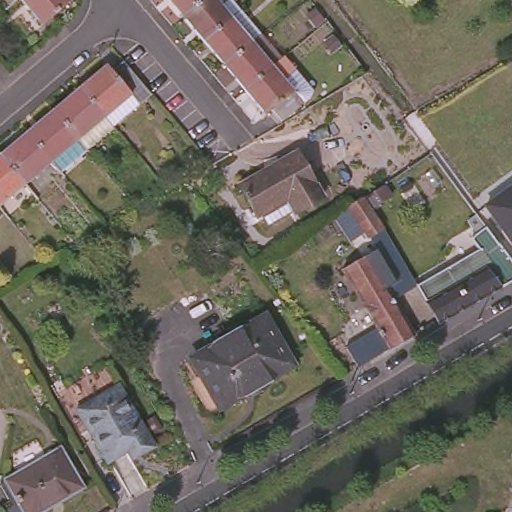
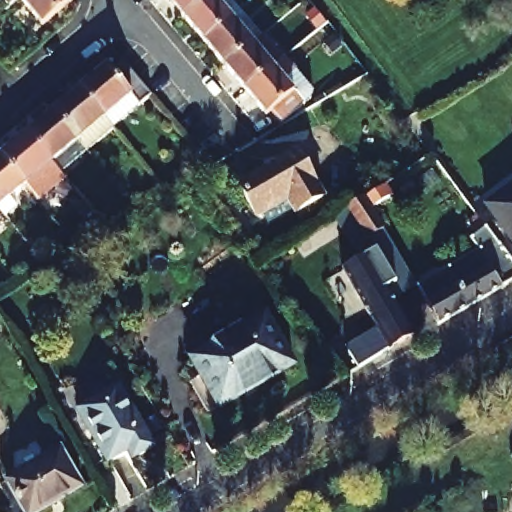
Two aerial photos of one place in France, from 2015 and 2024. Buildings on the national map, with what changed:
unchanged [(13,6),(7,0),(20,0),(13,6)]
unchanged [(45,24),(25,0),(72,0),(45,24)]
unchanged [(178,15),(165,0),(196,0),(178,15)]
unchanged [(178,15),(196,0),(214,0),(226,16),(198,39),(178,15)]
unchanged [(198,39),(226,16),(247,41),(219,64),(198,39)]
unchanged [(219,64),(247,41),(258,32),(279,58),(241,89),(219,64)]
unchanged [(284,54),(296,69),(280,80),(289,91),(261,113),(241,89),(279,58),(284,54)]
unchanged [(83,87),(111,63),(117,70),(126,63),(156,98),(119,129),(83,87)]
unchanged [(57,108),(83,87),(119,129),(93,151),(57,108)]
unchanged [(93,151),(66,173),(54,159),(30,131),(57,108),(93,151)]
unchanged [(28,181),(3,153),(30,131),(54,159),(28,181)]
unchanged [(259,211),(252,215),(236,183),(296,150),(319,195),(291,211),(289,209),(265,223),(259,211)]
unchanged [(1,203),(0,202),(0,155),(3,153),(28,181),(1,203)]
unchanged [(485,202),(512,183),(512,233),(509,235),(485,202)]
unchanged [(381,230),(367,238),(348,207),(348,206),(361,198),(381,230)]
unchanged [(0,204),(0,202),(1,203),(0,204)]
unchanged [(512,277),(438,321),(436,319),(414,284),(478,247),(470,236),(484,226),(512,263),(512,277)]
unchanged [(409,333),(371,356),(358,335),(369,327),(336,272),(362,256),(409,333)]
unchanged [(213,348),(264,318),(291,367),(243,395),(213,348)]
unchanged [(221,408),(193,360),(213,348),(243,395),(221,408)]
unchanged [(146,442),(132,450),(126,441),(100,456),(70,404),(112,380),(146,442)]
unchanged [(30,512),(24,512),(4,479),(57,447),(78,484),(30,512)]

